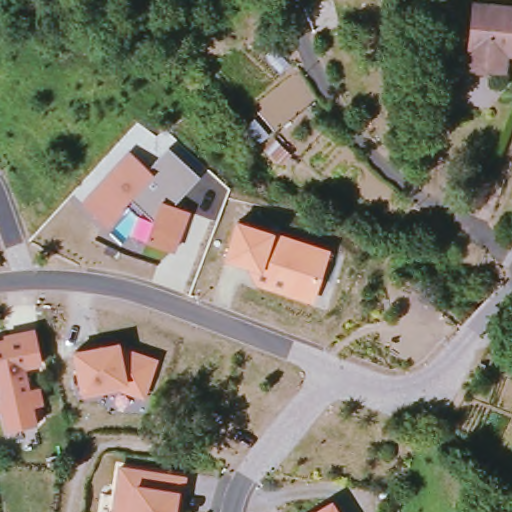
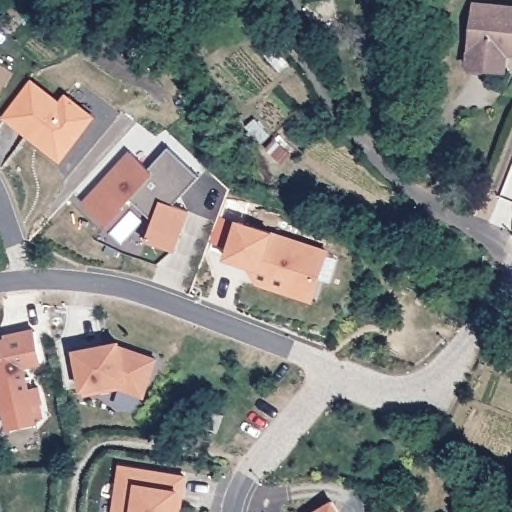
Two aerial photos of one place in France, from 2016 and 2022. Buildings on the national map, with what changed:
unchanged [(495,70),(469,67),(475,4),(512,8),(512,54),(508,53),(506,71),(495,70)]
new [(30,80),(60,103),(67,96),(94,117),(58,164),(0,117),(30,80)]
unchanged [(131,151),(151,170),(171,149),(201,178),(174,206),(190,212),(176,252),(149,244),(155,221),(134,203),(110,229),(83,201),(131,151)]
unchanged [(237,221),(275,233),(329,252),(313,304),(256,286),(246,267),(224,260),(237,221)]
unchanged [(28,367),(33,388),(41,386),(44,403),(36,405),(38,425),(9,431),(4,411),(0,408),(0,399),(0,341),(4,340),(4,334),(36,328),(44,364),(28,367)]
unchanged [(121,340),(159,359),(146,399),(119,386),(83,394),(75,351),(121,340)]
unchanged [(183,512),(113,512),(118,465),(187,475),(183,512)]
unchanged [(341,512),(314,512),(334,500),(341,512)]

